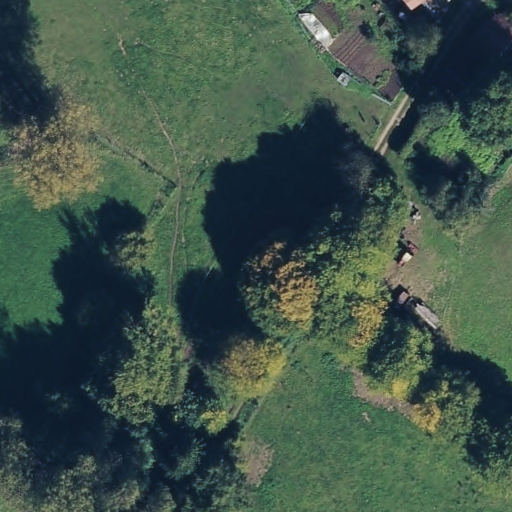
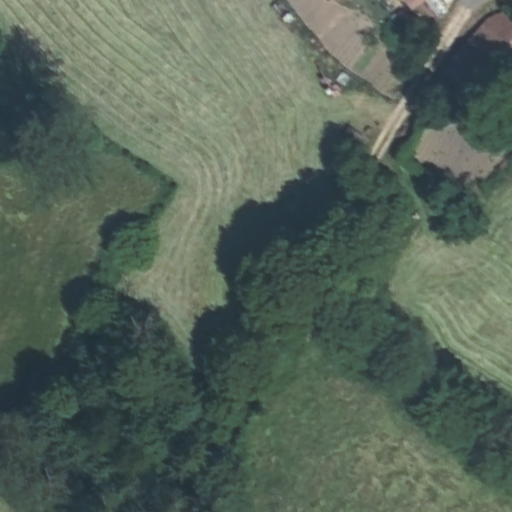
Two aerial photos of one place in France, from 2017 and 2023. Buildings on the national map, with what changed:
unchanged [(475,100),(442,65),(499,4),(512,16),(512,57),(475,100)]

